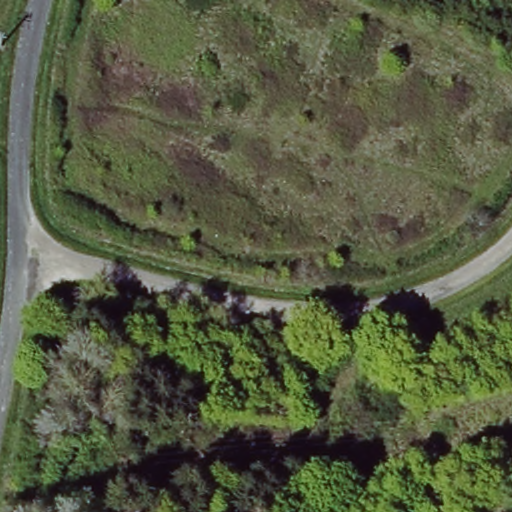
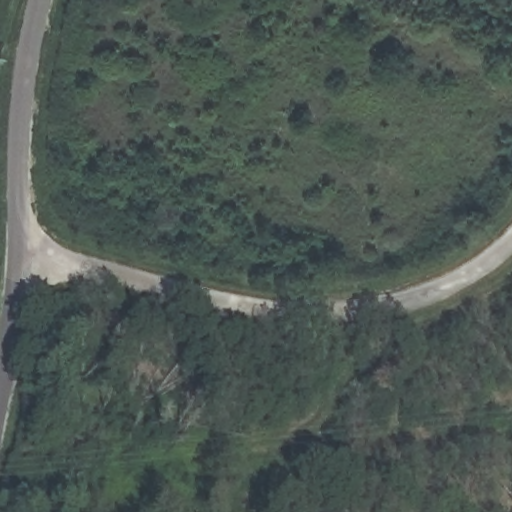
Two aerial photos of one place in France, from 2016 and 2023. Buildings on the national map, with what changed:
[]

